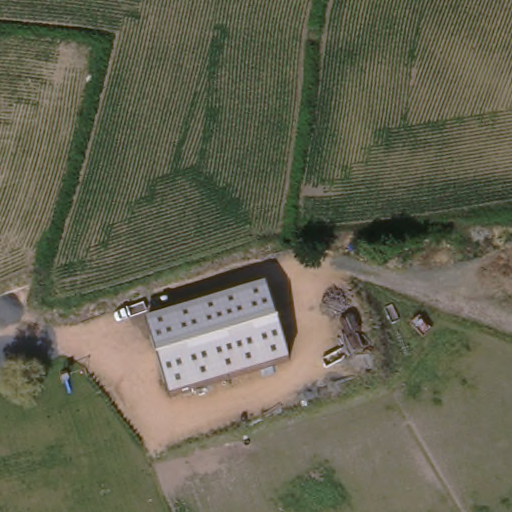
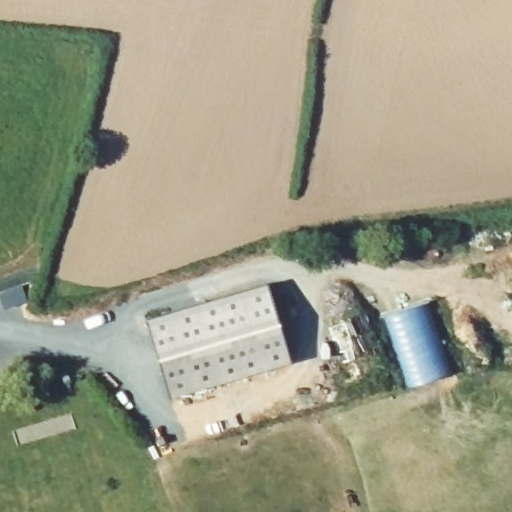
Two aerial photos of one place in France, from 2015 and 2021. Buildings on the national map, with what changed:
unchanged [(146,318),(267,283),(290,361),(169,397),(146,318)]
new [(387,313),(424,299),(449,371),(410,385),(387,313)]

